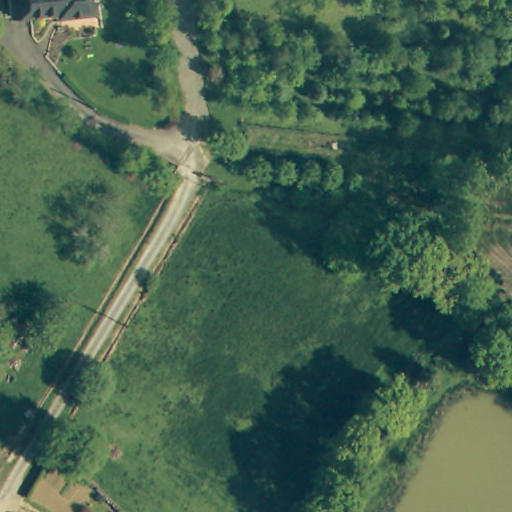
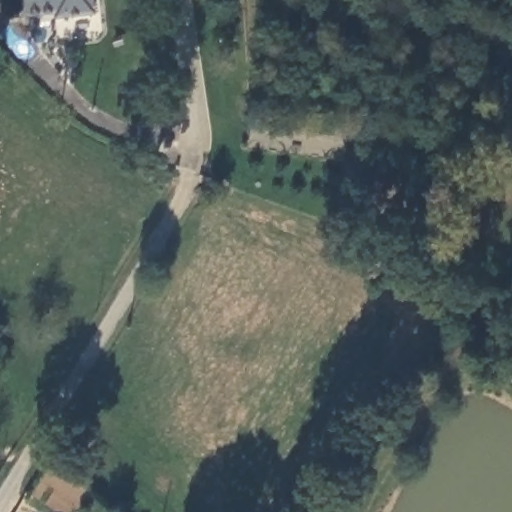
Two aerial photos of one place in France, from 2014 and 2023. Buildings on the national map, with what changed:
unchanged [(84,10),(10,18),(7,0),(96,0),(97,9),(84,10)]

